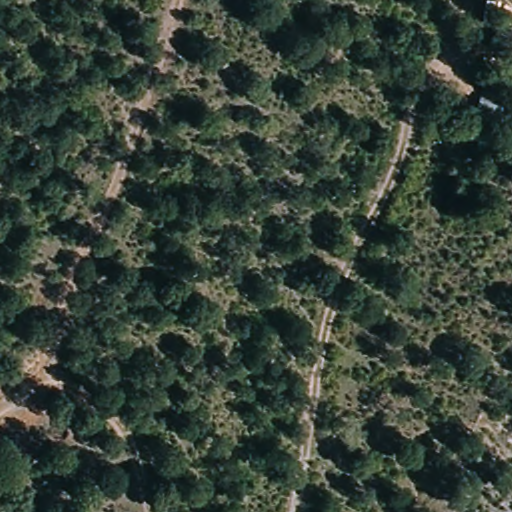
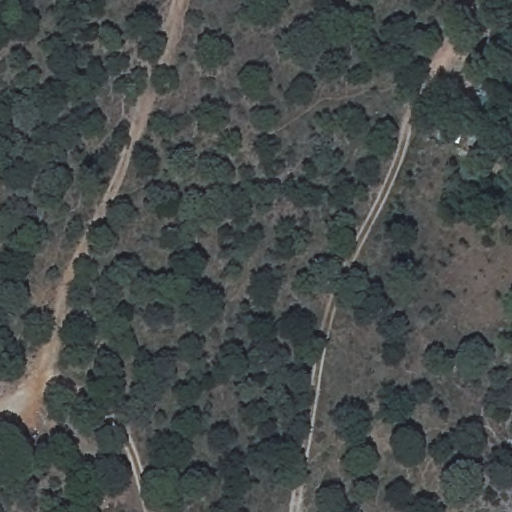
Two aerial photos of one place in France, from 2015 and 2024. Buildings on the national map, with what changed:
unchanged [(504,152),(470,148),(484,75),(512,81),(512,85),(504,152)]

